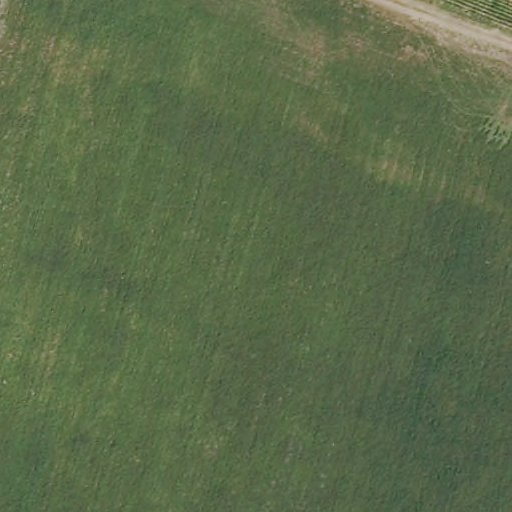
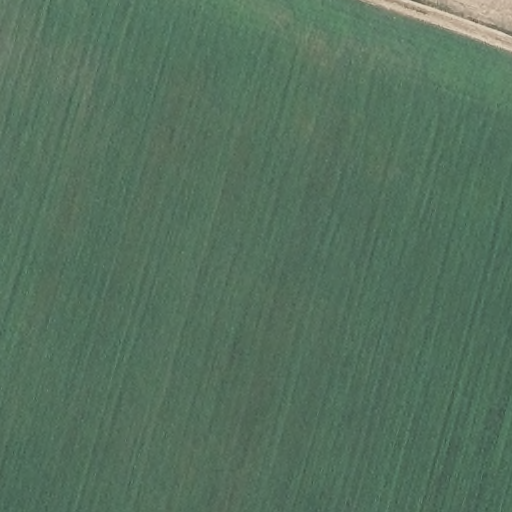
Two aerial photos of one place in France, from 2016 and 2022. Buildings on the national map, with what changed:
[]

